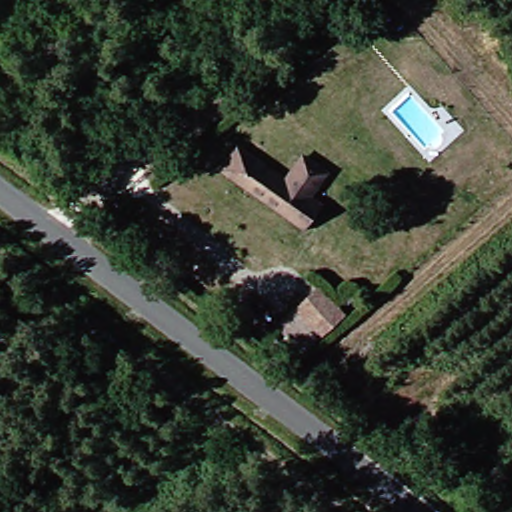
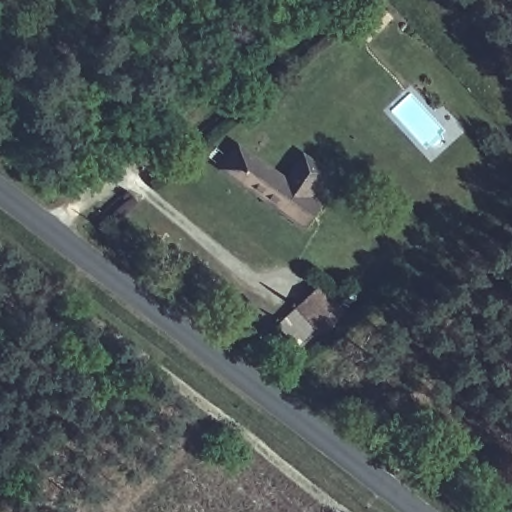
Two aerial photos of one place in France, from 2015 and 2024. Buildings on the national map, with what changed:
unchanged [(291,179),(297,182),(305,168),(311,156),(316,160),(331,167),(318,192),(318,193),(328,199),(313,225),(295,215),(293,214),(264,199),(221,176),(236,150),(291,179)]
unchanged [(307,298),(330,323),(315,338),(291,314),(307,298)]

